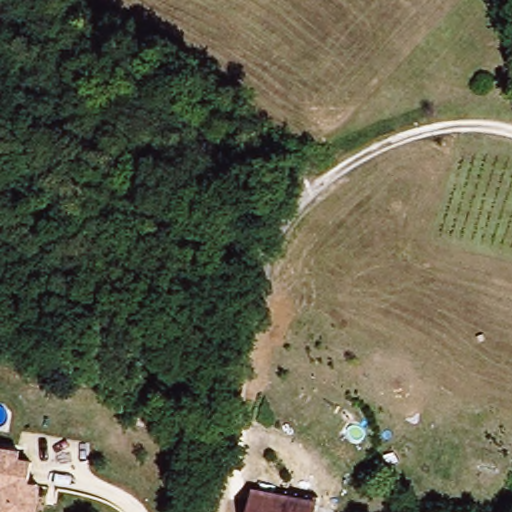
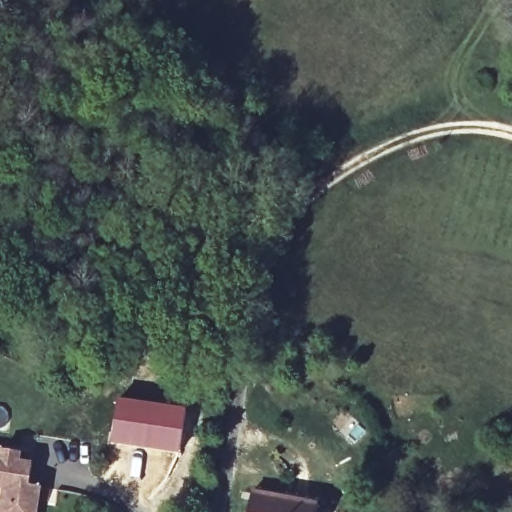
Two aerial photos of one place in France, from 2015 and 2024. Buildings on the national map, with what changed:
new [(117,398),(187,408),(180,454),(110,444),(117,398)]
unchanged [(39,467),(36,487),(49,489),(46,512),(5,512),(7,495),(0,493),(0,461),(0,447),(11,449),(30,452),(27,466),(39,467)]
unchanged [(321,506),(319,512),(249,512),(257,492),(278,499),(276,504),(285,508),(290,496),(321,506)]

